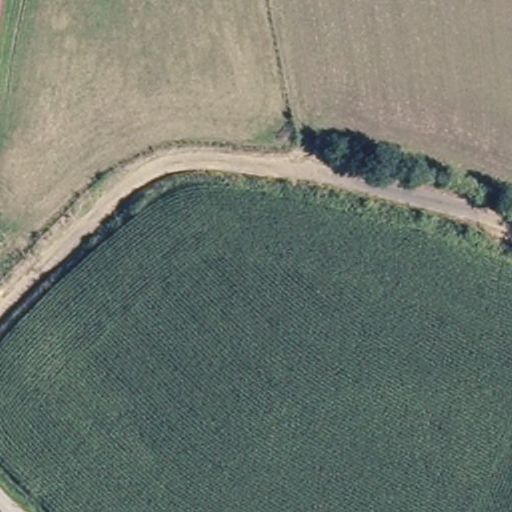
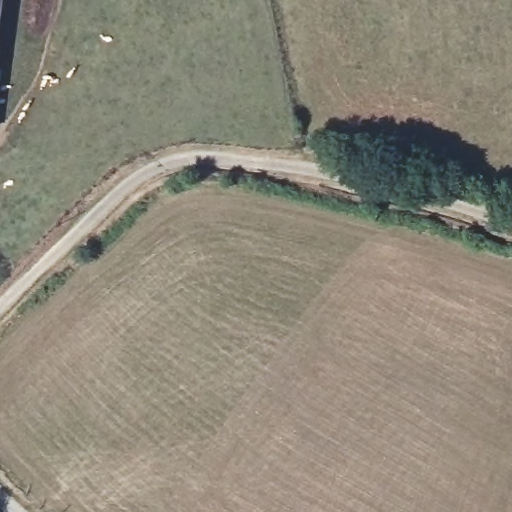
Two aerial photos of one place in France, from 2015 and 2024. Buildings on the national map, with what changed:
unchanged [(0,20),(0,0),(3,0),(0,20)]

